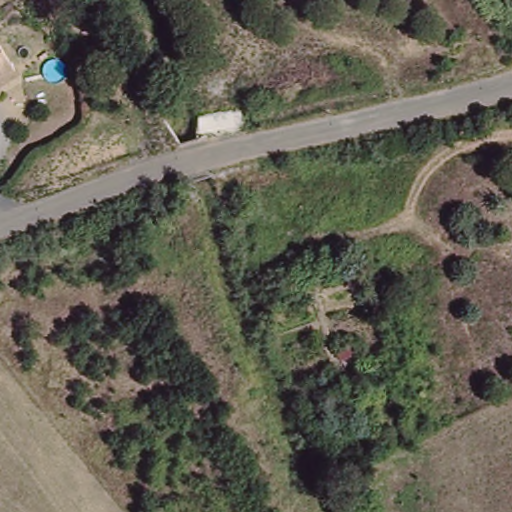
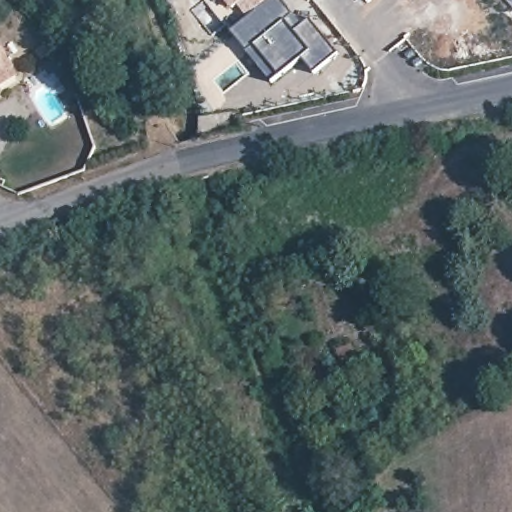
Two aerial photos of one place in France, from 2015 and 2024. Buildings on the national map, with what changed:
new [(237,8),(232,12),(222,0),(268,0),(246,18),(237,8)]
new [(268,0),(282,0),(301,23),(307,18),(338,54),(314,74),(301,59),(272,83),(230,31),(246,18),(268,0)]
unchanged [(17,68),(0,80),(0,44),(17,68)]
unchanged [(358,357),(339,361),(336,349),(354,342),(358,357)]

